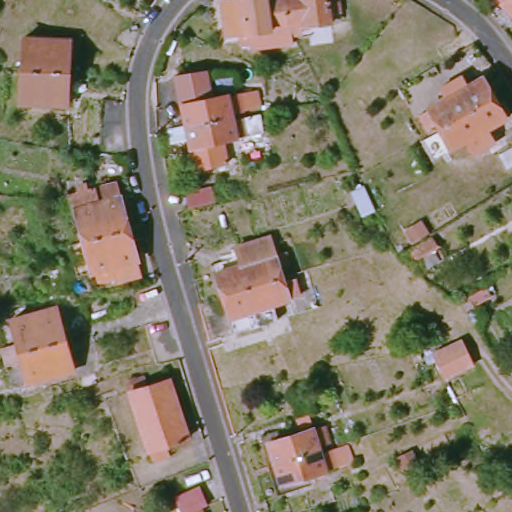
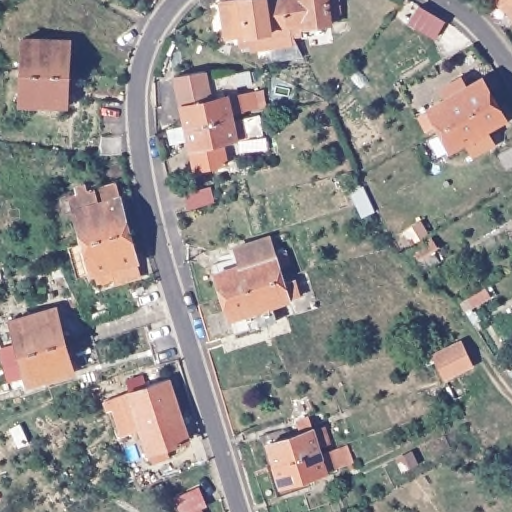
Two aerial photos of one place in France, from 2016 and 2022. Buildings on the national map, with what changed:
unchanged [(290,45),(249,55),(248,50),(238,52),(235,43),(223,46),(214,9),(246,0),(262,0),(262,1),(266,0),(278,0),(285,25),(290,45)]
unchanged [(332,7),(322,10),(325,20),(302,26),(301,22),(295,24),(298,35),(291,36),(285,25),(278,0),(330,0),(332,7)]
unchanged [(490,0),(493,0),(492,1),(490,0)]
unchanged [(492,1),(493,0),(512,0),(512,19),(492,1)]
unchanged [(18,70),(20,41),(65,45),(63,74),(18,70)]
unchanged [(16,104),(18,70),(63,74),(60,107),(16,104)]
unchanged [(176,75),(206,71),(211,99),(253,92),(256,110),(229,115),(229,119),(185,125),(176,75)]
unchanged [(432,121),(421,126),(415,115),(426,109),(424,105),(438,98),(433,89),(454,77),(459,85),(474,77),(486,96),(435,126),(432,121)]
unchanged [(498,118),(480,129),(487,145),(465,156),(458,143),(446,149),(446,147),(436,152),(428,138),(438,132),(435,126),(486,96),(498,118)]
unchanged [(224,163),(195,169),(191,146),(190,146),(189,139),(170,142),(167,129),(185,125),(229,119),(230,122),(257,117),(259,134),(221,140),(224,163)]
unchanged [(493,149),(512,137),(512,153),(499,160),(493,149)]
unchanged [(81,246),(73,215),(68,196),(111,185),(125,234),(81,246)]
unchanged [(187,219),(184,200),(209,196),(212,214),(187,219)]
unchanged [(62,250),(78,247),(81,246),(125,234),(138,280),(112,287),(111,283),(94,288),(90,276),(87,277),(72,281),(62,250)]
unchanged [(278,286),(279,291),(219,305),(212,271),(238,265),(237,258),(271,250),(275,272),(286,270),(288,284),(278,286)]
unchanged [(461,300),(484,288),(489,299),(466,310),(461,300)]
unchanged [(280,297),(291,295),(293,308),(284,310),(285,313),(269,317),(272,333),(228,342),(219,305),(279,291),(280,297)]
unchanged [(17,352),(7,321),(52,308),(61,340),(17,352)]
unchanged [(70,370),(27,383),(17,352),(61,340),(70,370)]
unchanged [(440,374),(432,351),(461,340),(470,363),(440,374)]
unchanged [(162,447),(165,456),(148,461),(145,452),(142,453),(123,392),(125,391),(123,381),(140,376),(143,386),(164,380),(182,441),(162,447)]
unchanged [(267,465),(260,443),(303,430),(304,432),(313,430),(317,445),(309,447),(310,450),(267,465)]
unchanged [(316,471),(317,473),(274,486),(267,465),(310,450),(311,456),(320,453),(324,468),(316,471)]
unchanged [(199,495),(206,511),(204,512),(179,512),(176,503),(199,495)]

